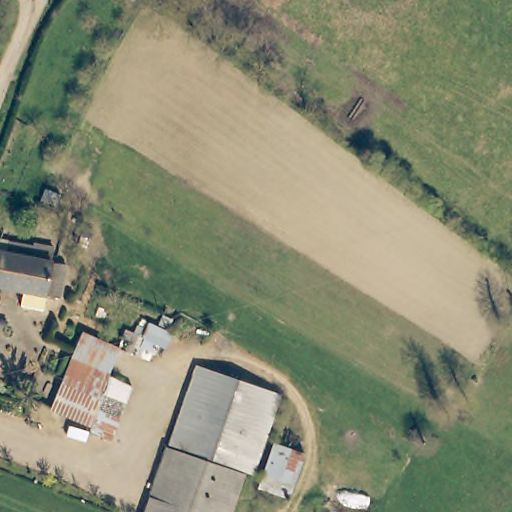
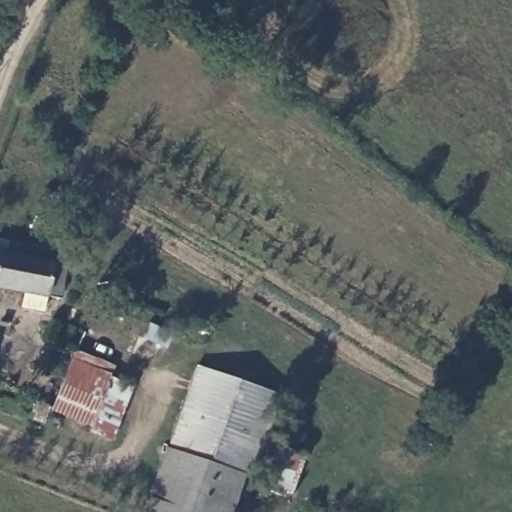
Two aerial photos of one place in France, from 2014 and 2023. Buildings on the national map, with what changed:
unchanged [(19,292),(0,288),(0,239),(1,240),(26,244),(28,243),(49,247),(46,263),(61,266),(54,299),(41,297),(37,313),(16,310),(19,292)]
unchanged [(121,347),(110,377),(133,386),(110,443),(87,434),(90,428),(51,410),(81,332),(121,347)]
unchanged [(196,366),(278,395),(250,475),(169,445),(196,366)]
unchanged [(259,487),(274,444),(305,455),(290,497),(259,487)]
unchanged [(241,475),(229,512),(145,512),(166,448),(241,475)]

